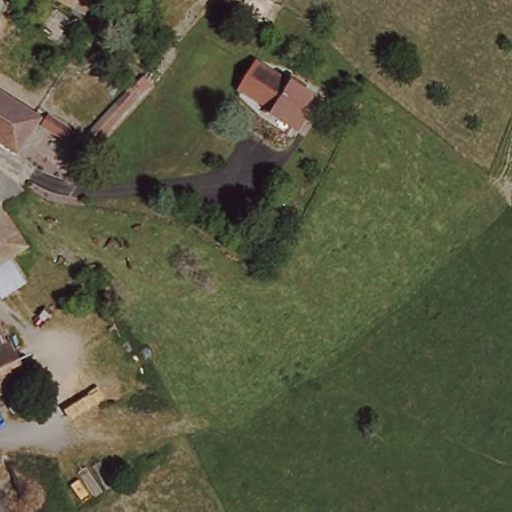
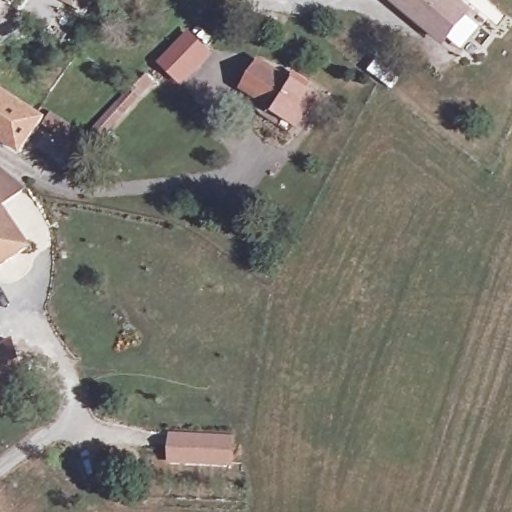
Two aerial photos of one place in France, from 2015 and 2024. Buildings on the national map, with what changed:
unchanged [(89,11),(66,0),(94,0),(89,11)]
new [(387,0),(460,0),(474,12),(446,48),(388,1),(387,0)]
new [(180,86),(159,62),(188,32),(212,56),(180,86)]
new [(240,89),(261,59),(287,76),(264,108),(240,89)]
unchanged [(292,70),(322,90),(295,130),(264,108),(292,70)]
new [(144,72),(156,84),(106,138),(95,127),(144,72)]
unchanged [(0,138),(0,89),(45,118),(22,152),(0,138)]
unchanged [(55,120),(67,129),(63,135),(51,126),(55,120)]
unchanged [(32,246),(18,254),(0,267),(0,167),(25,190),(3,205),(32,246)]
unchanged [(37,283),(5,305),(0,295),(0,267),(18,254),(37,283)]
unchanged [(16,339),(0,346),(0,312),(2,312),(16,339)]
unchanged [(32,379),(0,394),(0,346),(16,339),(32,379)]
new [(167,431),(235,434),(232,465),(167,462),(167,431)]

